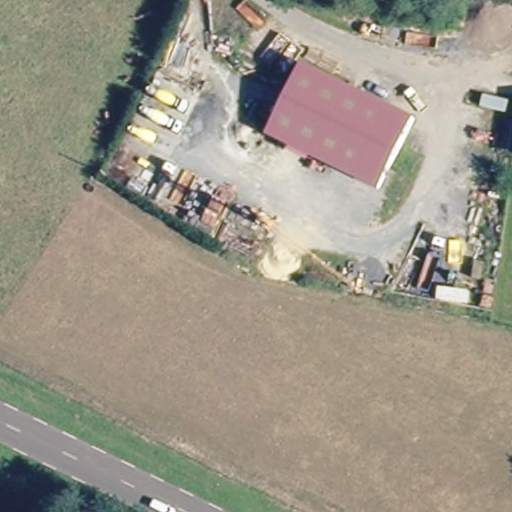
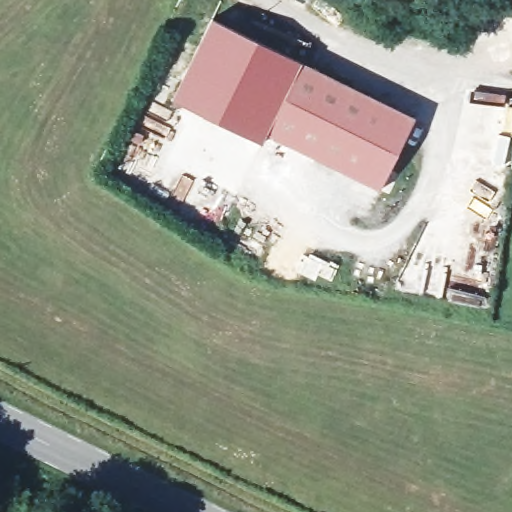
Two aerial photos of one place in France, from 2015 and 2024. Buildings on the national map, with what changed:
new [(302,61),(272,130),(268,128),(261,144),(171,98),(212,17),(302,61)]
unchanged [(302,61),(415,115),(392,160),(400,168),(387,191),(377,187),(271,132),(302,61)]

